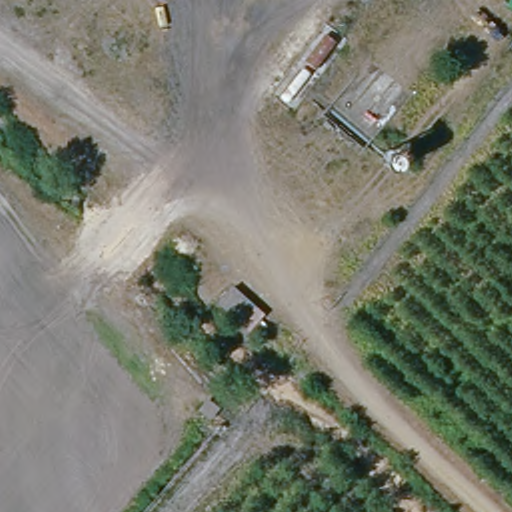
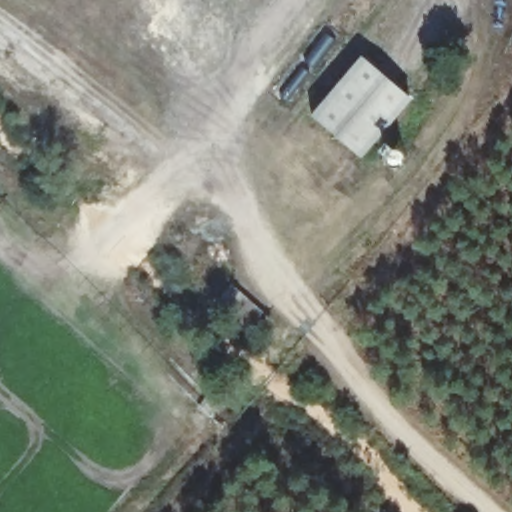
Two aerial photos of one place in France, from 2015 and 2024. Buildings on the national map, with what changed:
new [(362,159),(311,116),(363,55),(413,99),(362,159)]
unchanged [(417,161),(396,171),(389,159),(406,146),(417,161)]
unchanged [(219,302),(235,287),(267,315),(251,329),(219,302)]

